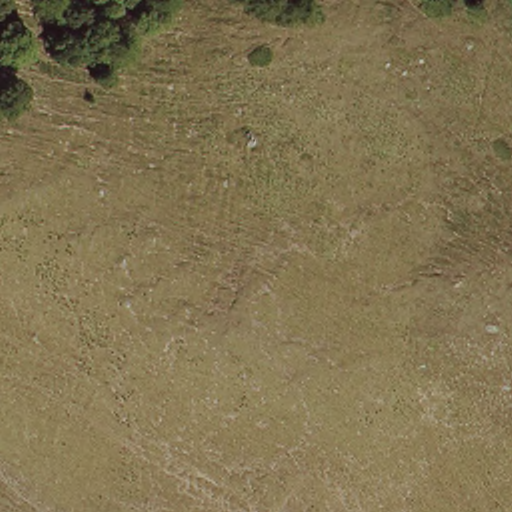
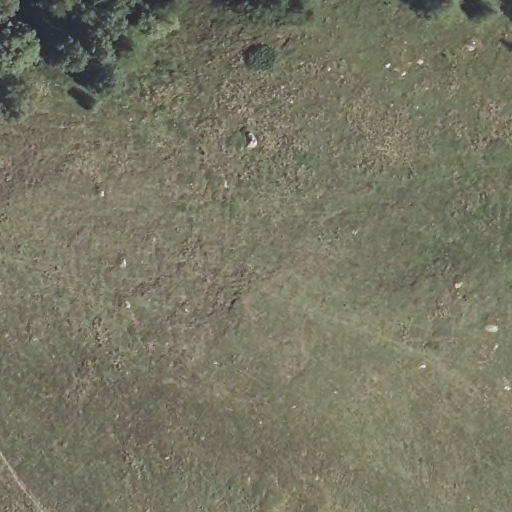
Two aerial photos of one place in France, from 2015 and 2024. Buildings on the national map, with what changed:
[]

